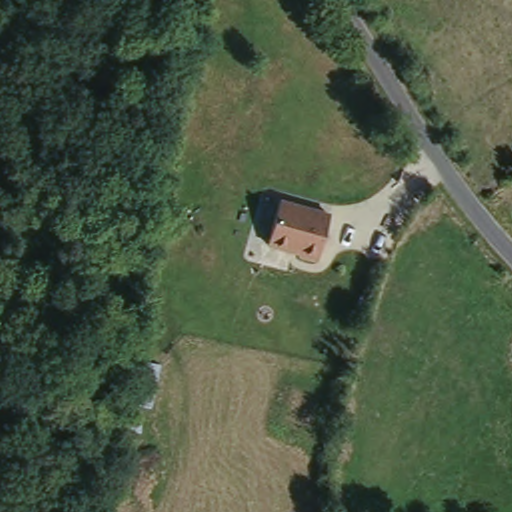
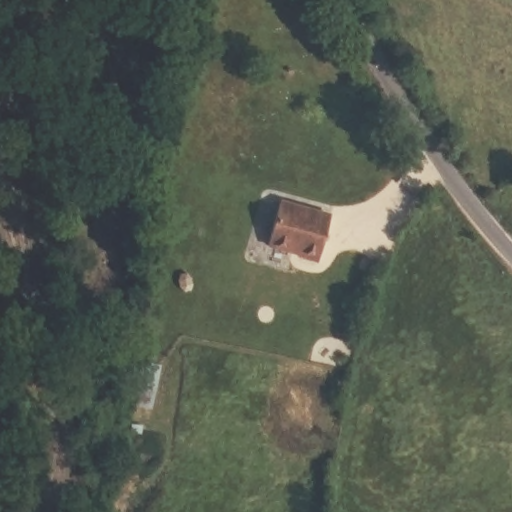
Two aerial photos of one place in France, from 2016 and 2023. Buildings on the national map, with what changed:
unchanged [(331,215),(319,261),(265,247),(281,200),(331,215)]

